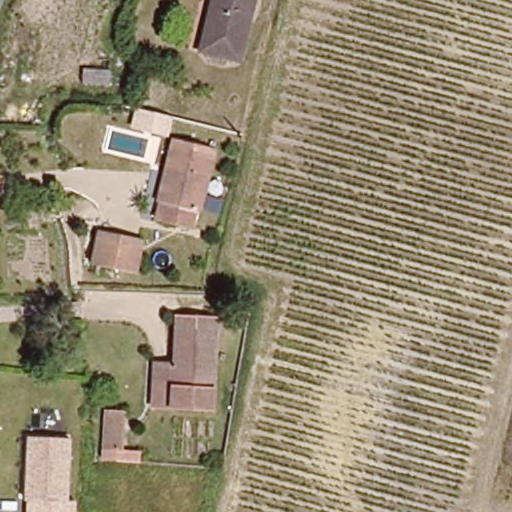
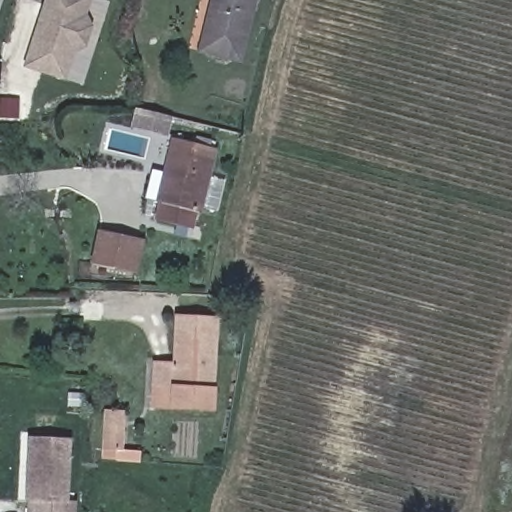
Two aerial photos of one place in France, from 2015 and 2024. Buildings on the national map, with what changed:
new [(66,81),(24,68),(45,0),(91,0),(87,15),(94,26),(86,48),(75,52),(66,81)]
unchanged [(239,58),(200,50),(211,0),(252,0),(239,58)]
demolished [(40,29),(27,81),(4,78),(16,24),(40,29)]
unchanged [(195,229),(154,219),(172,140),(214,150),(195,229)]
unchanged [(146,237),(140,276),(93,269),(97,229),(146,237)]
unchanged [(162,383),(164,364),(182,364),(183,316),(215,319),(215,409),(175,408),(162,408),(162,383)]
unchanged [(129,408),(126,450),(143,449),(142,464),(101,462),(102,407),(129,408)]
unchanged [(65,503),(30,501),(20,501),(26,435),(71,440),(65,503)]
unchanged [(76,512),(29,512),(30,501),(65,503),(77,502),(76,512)]

